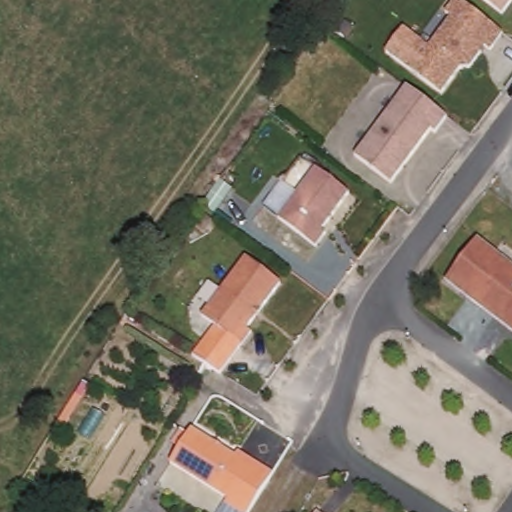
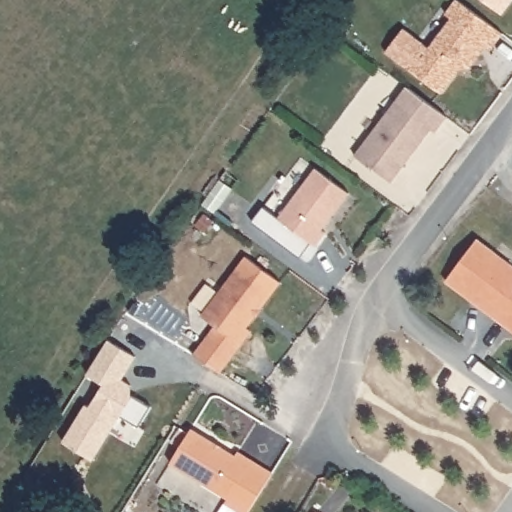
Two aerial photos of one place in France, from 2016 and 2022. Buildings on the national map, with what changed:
unchanged [(491,51),(486,47),(482,45),(478,51),(481,53),(471,67),(460,70),(441,94),(406,67),(423,44),(430,48),(452,19),(446,14),(456,0),(457,0),(503,34),(491,51)]
unchanged [(483,0),(512,0),(512,1),(502,15),(483,0)]
unchanged [(447,117),(435,133),(431,130),(391,184),(355,156),(407,87),(447,117)]
unchanged [(350,193),(322,230),(326,232),(316,247),(278,219),(316,169),(350,193)]
unchanged [(446,277),(477,235),(512,261),(512,326),(494,312),(446,277)]
unchanged [(246,257),(281,283),(247,328),(252,332),(241,346),(202,316),(246,257)]
unchanged [(220,374),(195,357),(216,327),(241,346),(220,374)]
new [(137,357),(123,379),(132,386),(132,395),(151,406),(139,427),(121,417),(92,461),(63,442),(87,403),(91,406),(104,385),(87,375),(108,340),(137,357)]
unchanged [(249,512),(239,512),(225,503),(227,500),(171,464),(192,429),(236,456),(238,452),(273,473),(249,512)]

